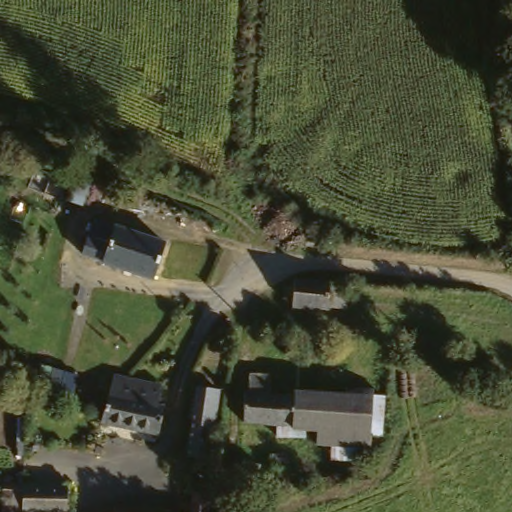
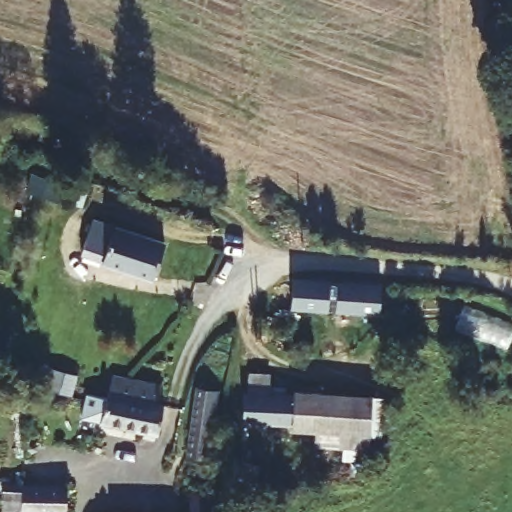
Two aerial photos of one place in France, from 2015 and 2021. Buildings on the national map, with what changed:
unchanged [(147,286),(73,255),(89,217),(164,248),(147,286)]
unchanged [(336,313),(298,312),(300,281),(338,282),(336,313)]
unchanged [(31,376),(86,384),(84,407),(34,397),(29,396),(31,376)]
unchanged [(106,376),(159,385),(149,436),(96,426),(106,376)]
unchanged [(248,380),(263,382),(263,405),(289,406),(288,430),(244,428),(246,405),(248,380)]
unchanged [(313,443),(312,435),(289,434),(288,430),(289,406),(291,391),(382,395),(382,436),(369,436),(366,446),(313,443)]
unchanged [(268,482),(249,482),(251,460),(269,461),(268,482)]
unchanged [(17,490),(60,492),(59,498),(59,512),(0,512),(0,490),(17,490)]

